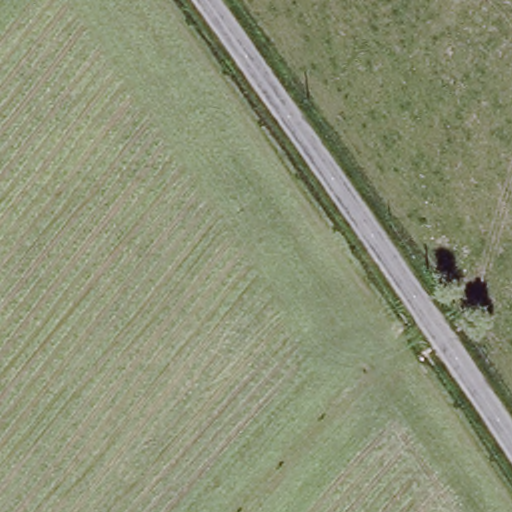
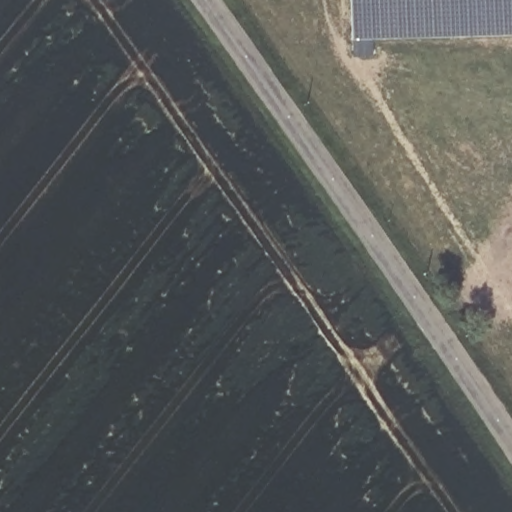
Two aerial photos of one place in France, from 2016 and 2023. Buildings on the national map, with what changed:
new [(349,0),(512,0),(512,32),(350,35),(349,0)]

